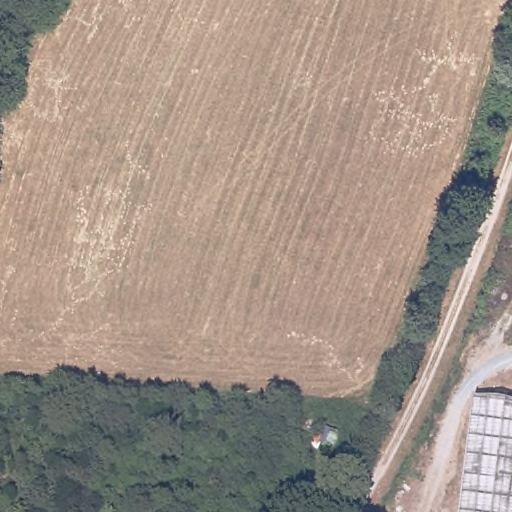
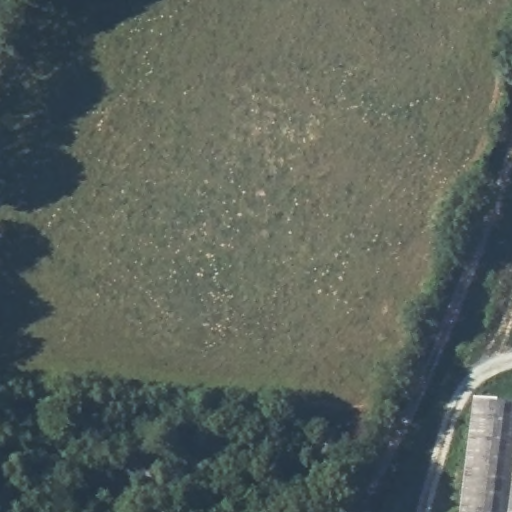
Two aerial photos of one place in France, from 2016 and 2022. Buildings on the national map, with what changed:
unchanged [(473,401),(512,405),(512,512),(459,512),(473,401)]

